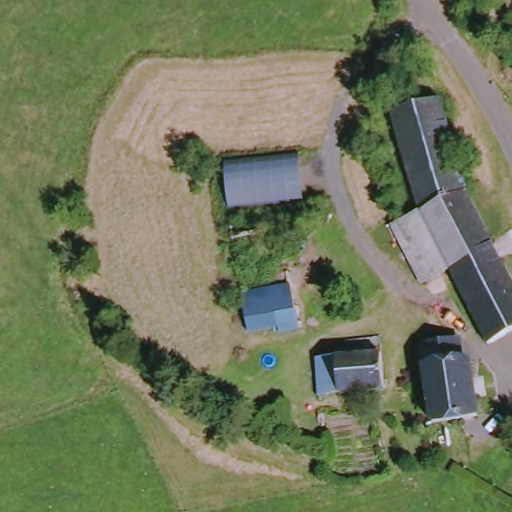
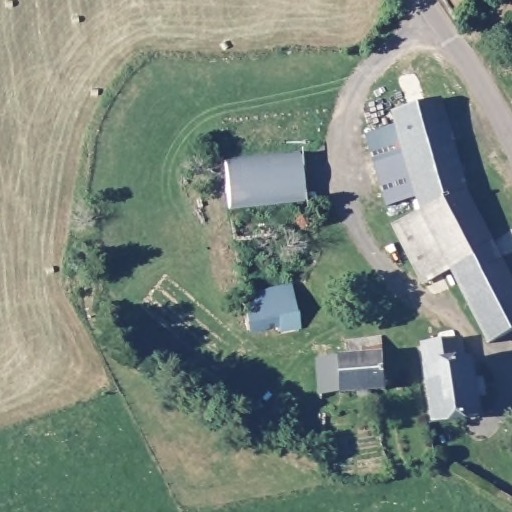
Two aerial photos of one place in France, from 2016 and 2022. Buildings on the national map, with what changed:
unchanged [(414,215),(386,119),(436,105),(462,196),(414,215)]
unchanged [(302,155),(305,200),(229,209),(225,164),(302,155)]
unchanged [(512,335),(483,350),(440,276),(418,289),(385,231),(415,217),(414,215),(462,196),(512,290),(512,336),(512,335)]
unchanged [(244,291),(299,281),(305,323),(284,327),(282,318),(250,323),(244,291)]
unchanged [(420,348),(455,342),(467,363),(470,363),(479,417),(432,425),(420,348)]
unchanged [(317,363),(345,362),(344,346),(382,343),(386,395),(318,400),(317,363)]

